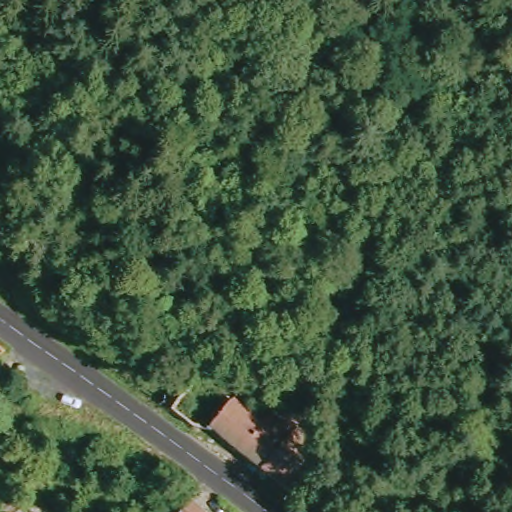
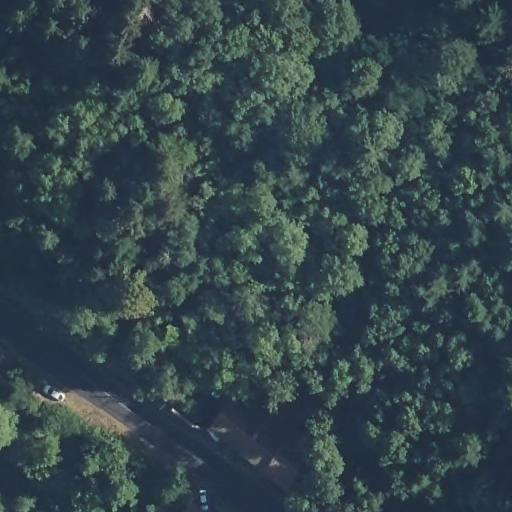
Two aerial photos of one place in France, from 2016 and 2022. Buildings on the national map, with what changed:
unchanged [(265,420),(273,405),(313,436),(289,492),(211,428),(233,396),(265,420)]
unchanged [(199,512),(181,512),(189,503),(199,512)]

